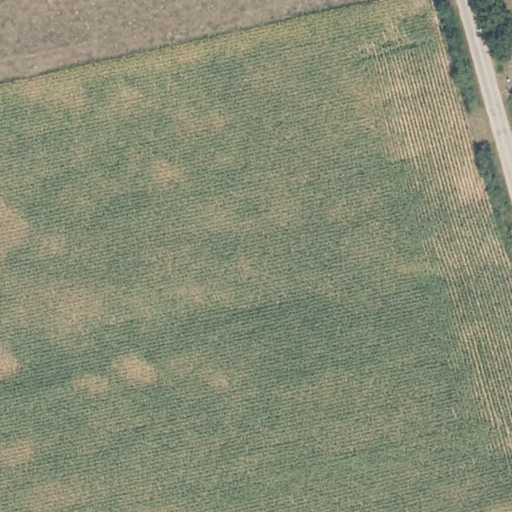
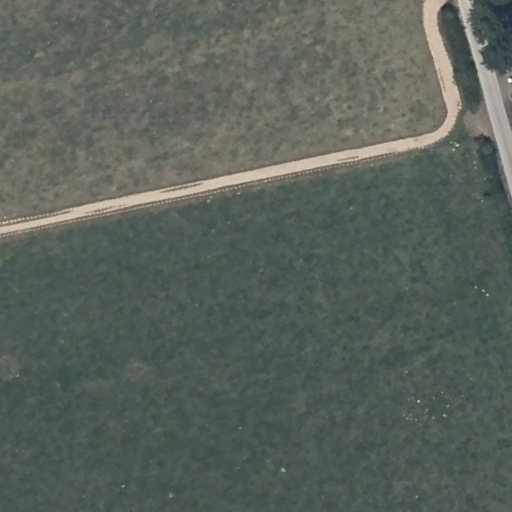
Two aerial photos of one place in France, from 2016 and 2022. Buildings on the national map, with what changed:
[]

